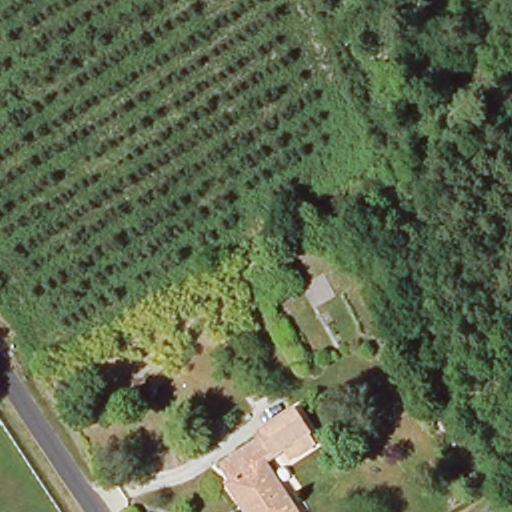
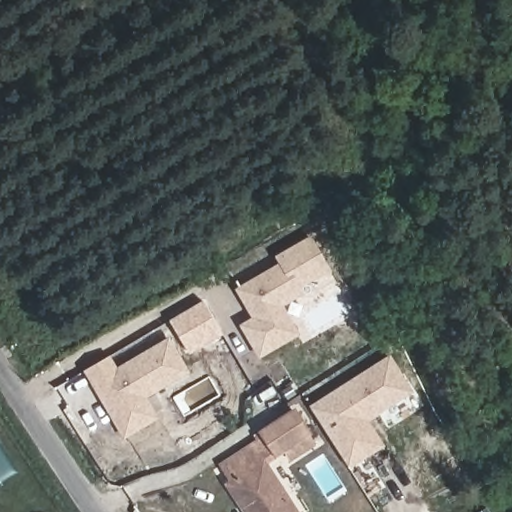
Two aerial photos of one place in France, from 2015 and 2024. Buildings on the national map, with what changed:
new [(234,288),(279,263),(275,256),(310,235),(331,270),(301,287),(304,293),(283,305),(300,333),(259,358),(237,325),(249,318),(234,288)]
new [(159,417),(123,438),(82,372),(110,355),(117,366),(169,335),(190,371),(147,397),(159,417)]
new [(347,465),(308,406),(390,355),(414,391),(369,417),(384,444),(347,465)]
unchanged [(240,512),(221,483),(228,478),(219,461),(256,440),(252,433),(271,422),(293,410),(310,434),(316,441),(296,455),(293,457),(286,447),(264,461),(295,512),(240,512)]

